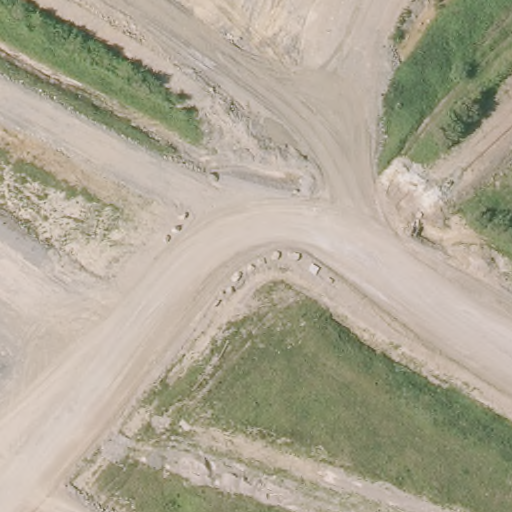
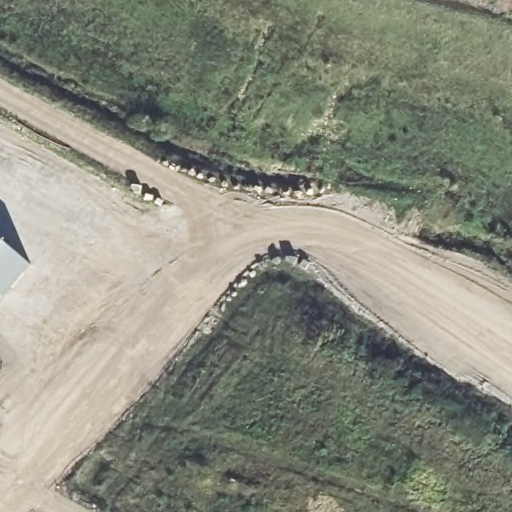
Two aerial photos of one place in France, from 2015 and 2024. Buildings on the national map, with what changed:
new [(31,266),(4,297),(0,294),(0,239),(3,242),(31,266)]

